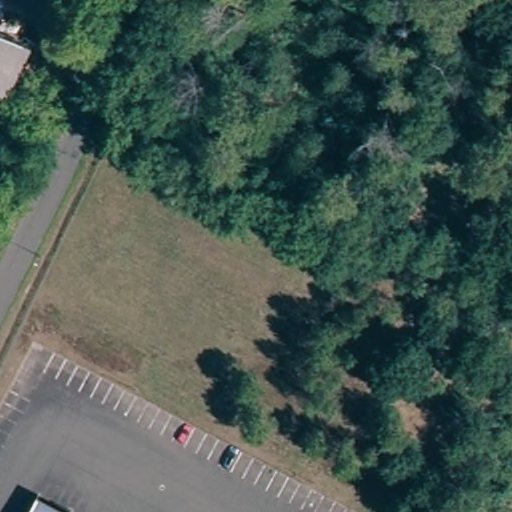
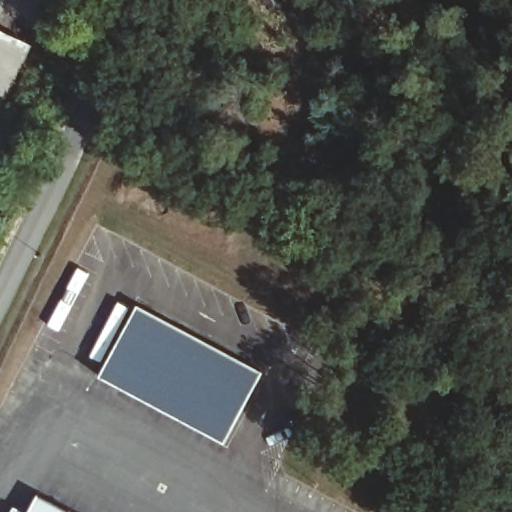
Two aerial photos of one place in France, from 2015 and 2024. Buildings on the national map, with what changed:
unchanged [(0,109),(0,31),(31,46),(0,109)]
unchanged [(108,170),(100,166),(105,159),(112,162),(108,170)]
new [(225,444),(101,377),(139,307),(263,372),(225,444)]
unchanged [(72,512),(29,512),(39,494),(72,512)]

